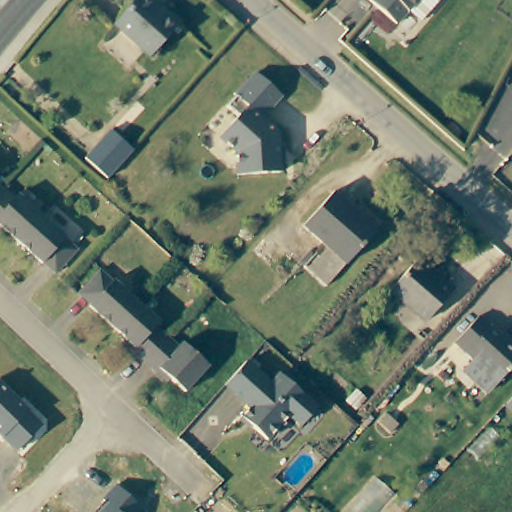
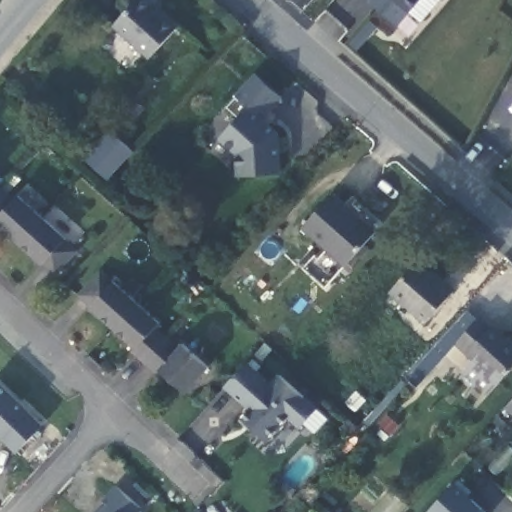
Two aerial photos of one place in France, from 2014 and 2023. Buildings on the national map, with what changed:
unchanged [(114,26),(135,0),(145,0),(156,9),(164,11),(179,24),(151,56),(114,26)]
unchanged [(411,32),(400,21),(377,0),(440,0),(411,32)]
unchanged [(275,92),(255,112),(272,129),(275,169),(233,171),(231,149),(214,134),(232,112),(221,102),(250,70),(275,92)]
unchanged [(116,118),(136,140),(102,179),(79,160),(116,118)]
unchanged [(42,262),(1,224),(0,224),(0,183),(19,202),(24,197),(66,236),(63,240),(77,254),(60,273),(47,260),(42,262)]
unchanged [(375,236),(326,293),(303,273),(322,251),(303,233),(332,199),(375,236)]
unchanged [(387,292),(413,262),(437,282),(438,281),(451,292),(422,323),(387,292)]
unchanged [(161,372),(156,378),(131,353),(135,350),(88,308),(91,305),(80,294),(97,275),(107,286),(112,282),(157,322),(154,326),(180,349),(184,345),(209,368),(184,395),(161,372)]
unchanged [(456,342),(478,317),(488,327),(490,325),(500,335),(501,333),(512,343),(512,362),(507,367),(510,369),(498,381),(456,342)]
unchanged [(249,359),(274,382),(282,372),(319,406),(302,424),(292,415),(271,438),(242,416),(252,406),(227,384),(249,359)]
unchanged [(16,451),(0,436),(0,382),(43,426),(16,451)]
unchanged [(512,403),(512,409),(509,407),(512,403)]
new [(472,492),(468,494),(487,512),(427,512),(459,480),(472,492)]
unchanged [(141,507),(136,512),(96,512),(106,502),(103,498),(116,484),(141,507)]

